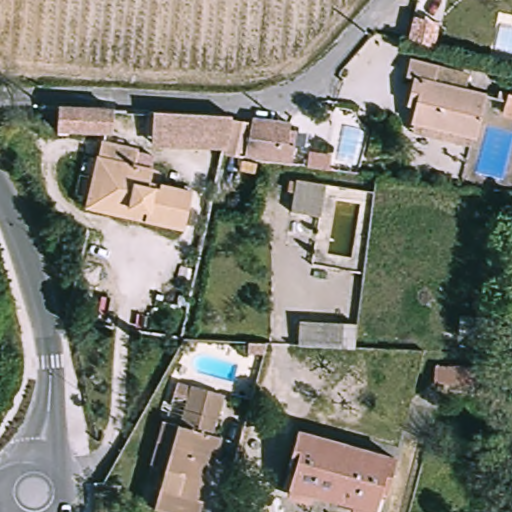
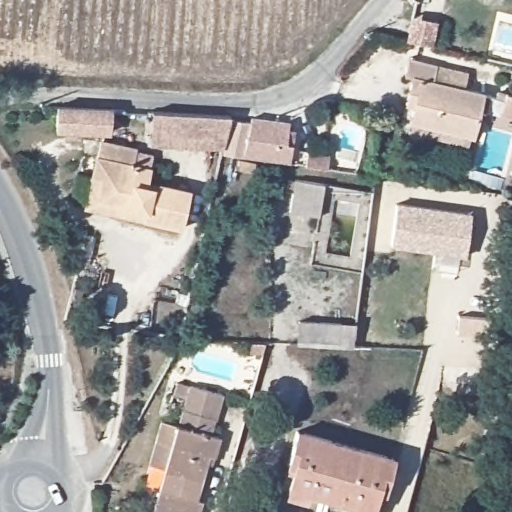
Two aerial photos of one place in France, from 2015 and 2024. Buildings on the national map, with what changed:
unchanged [(397,44),(401,19),(426,24),(421,48),(397,44)]
unchanged [(414,131),(416,124),(421,101),(413,99),(416,82),(409,80),(412,64),(440,70),(436,85),(488,96),(480,137),(478,143),(414,131)]
unchanged [(505,107),(507,100),(512,101),(512,109),(505,107)]
unchanged [(64,104),(122,110),(119,129),(49,123),(52,103),(64,104)]
unchanged [(285,128),(291,129),(289,144),(286,163),(242,157),(222,155),(224,147),(150,143),(155,109),(195,112),(206,112),(212,113),(230,113),(230,118),(248,121),(248,116),(286,122),(285,128)]
unchanged [(86,202),(91,176),(99,139),(106,140),(137,147),(134,164),(152,169),(148,186),(159,189),(161,182),(194,190),(187,226),(146,216),(93,204),(86,202)]
unchanged [(308,152),(306,165),(301,165),(294,164),(295,151),(308,152)]
unchanged [(316,214),(286,209),(289,190),(283,190),(285,179),(290,180),(291,176),(320,181),(316,214)]
new [(466,255),(390,245),(395,202),(471,211),(466,255)]
unchanged [(349,325),(347,342),(305,338),(307,321),(349,325)]
unchanged [(492,328),(490,346),(458,343),(460,325),(492,328)]
unchanged [(479,378),(478,397),(436,395),(437,376),(479,378)]
unchanged [(227,428),(221,449),(215,447),(202,491),(208,493),(202,512),(196,512),(152,498),(158,478),(165,479),(178,437),(166,433),(172,412),(196,420),(200,406),(192,403),(194,397),(181,392),(184,380),(198,385),(228,396),(219,425),(227,428)]
unchanged [(281,492),(288,471),(279,468),(290,433),(338,447),(322,504),(281,492)]
unchanged [(388,461),(378,497),(371,495),(366,512),(348,512),(322,504),(338,447),(388,461)]

